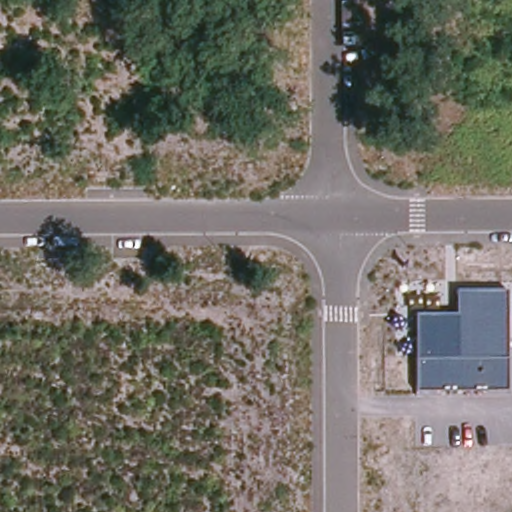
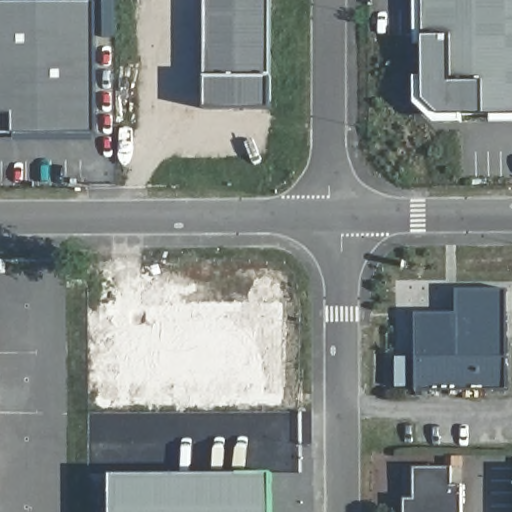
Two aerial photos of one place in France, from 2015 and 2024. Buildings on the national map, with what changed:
new [(57,2),(57,0),(93,0),(93,2),(97,2),(97,135),(0,135),(0,3),(57,2)]
new [(205,111),(205,0),(272,0),(272,111),(205,111)]
new [(424,101),(423,0),(512,0),(512,116),(439,116),(424,101)]
unchanged [(456,290),(506,289),(506,388),(414,390),(415,313),(456,313),(456,290)]
new [(404,499),(415,498),(414,467),(452,467),(452,485),(462,485),(463,512),(404,512),(404,499)]
new [(273,472),(273,512),(110,512),(110,475),(273,472)]

